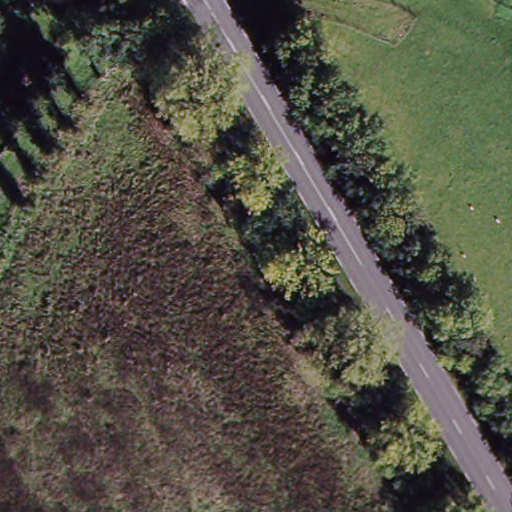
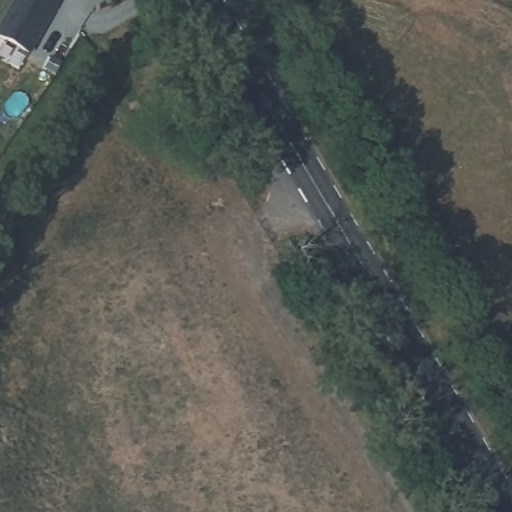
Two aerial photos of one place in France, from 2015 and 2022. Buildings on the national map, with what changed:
new [(61,0),(32,51),(0,36),(18,0),(61,0)]
unchanged [(44,62),(26,91),(13,81),(32,53),(44,62)]

